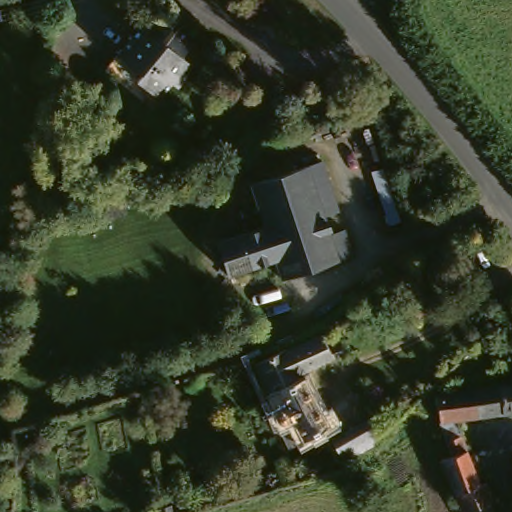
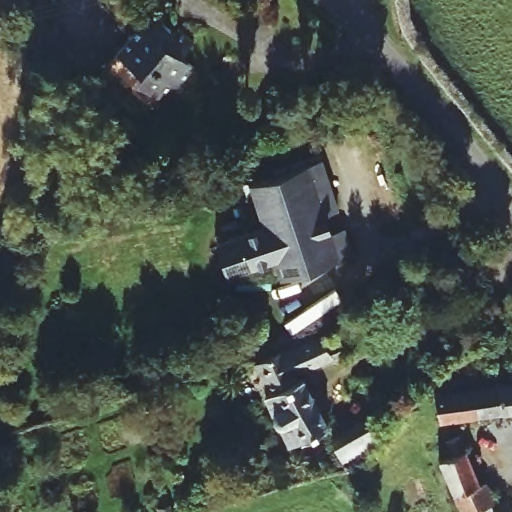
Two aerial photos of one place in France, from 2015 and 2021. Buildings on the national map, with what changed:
unchanged [(177,36),(193,51),(172,76),(184,88),(170,104),(165,101),(154,114),(130,92),(136,84),(112,63),(150,20),(173,41),(177,36)]
unchanged [(347,263),(332,268),(275,285),(270,268),(223,282),(212,247),(259,233),(246,188),(315,165),(328,205),(332,217),(318,221),(323,241),(338,236),(347,263)]
unchanged [(341,349),(346,360),(298,382),(288,356),(326,340),(332,353),(341,349)]
unchanged [(440,471),(445,470),(435,402),(512,388),(512,420),(460,431),(466,473),(473,495),(484,492),(489,512),(452,512),(440,471)]
unchanged [(287,456),(282,446),(295,439),(292,432),(278,440),(262,411),(283,399),(301,389),(329,440),(290,461),(287,456)]
unchanged [(359,398),(377,430),(361,441),(342,408),(359,398)]
unchanged [(373,462),(340,482),(327,463),(330,461),(361,441),(373,462)]

